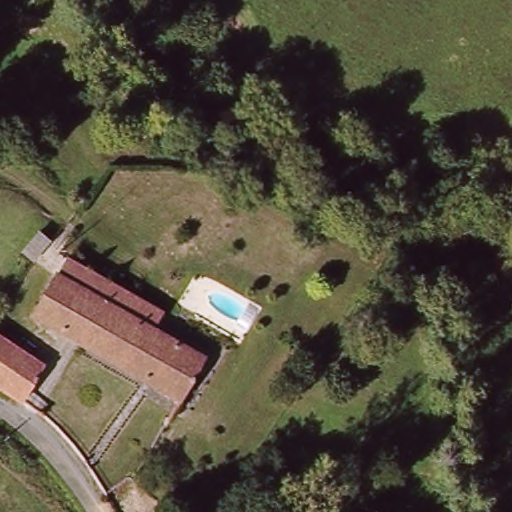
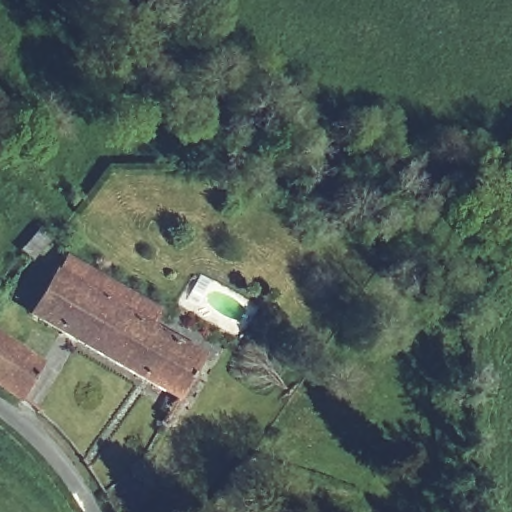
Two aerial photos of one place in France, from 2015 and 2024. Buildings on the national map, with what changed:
unchanged [(39,262),(36,261),(35,260),(28,254),(29,253),(46,234),(56,242),(39,262)]
unchanged [(76,260),(172,316),(162,332),(106,299),(67,277),(76,260)]
unchanged [(213,361),(191,398),(44,316),(67,277),(106,299),(162,332),(213,361)]
unchanged [(31,401),(0,378),(0,329),(50,364),(31,401)]

